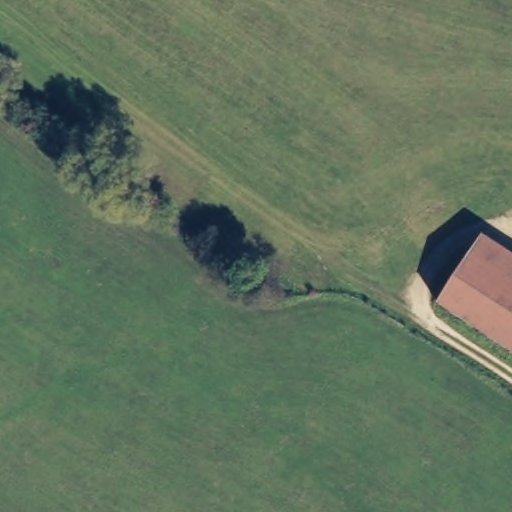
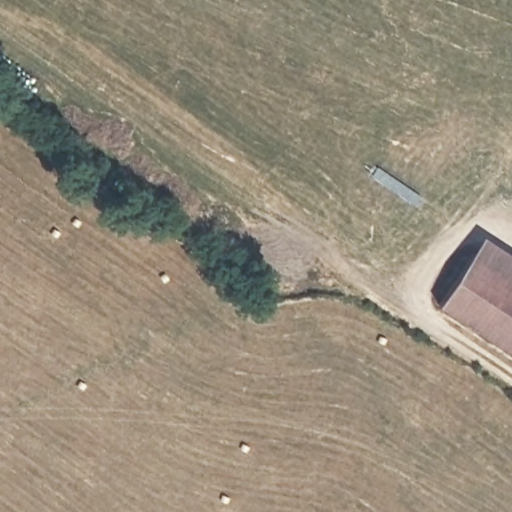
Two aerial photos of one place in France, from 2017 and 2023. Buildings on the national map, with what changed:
unchanged [(482,237),(512,257),(512,353),(441,303),(482,237)]

